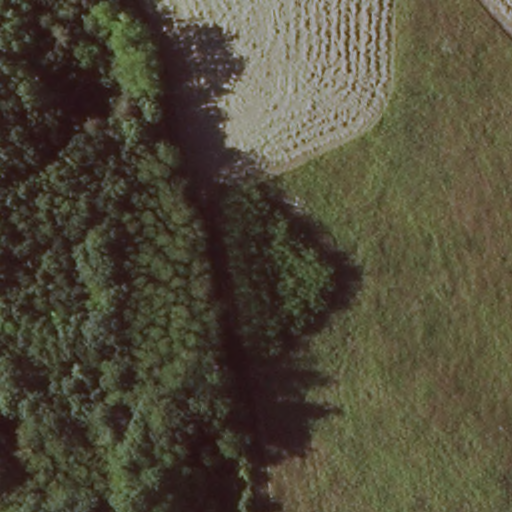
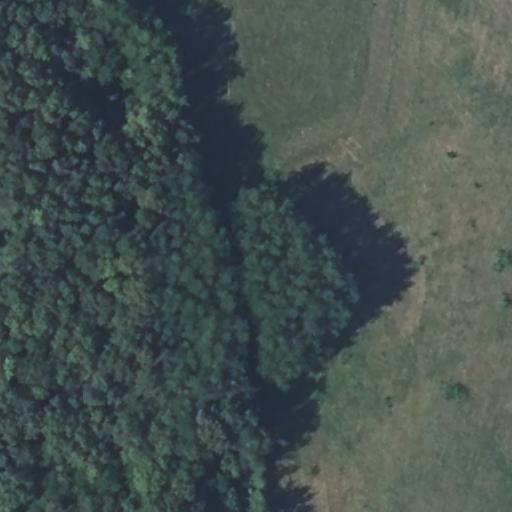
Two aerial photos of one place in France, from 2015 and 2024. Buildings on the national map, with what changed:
[]

